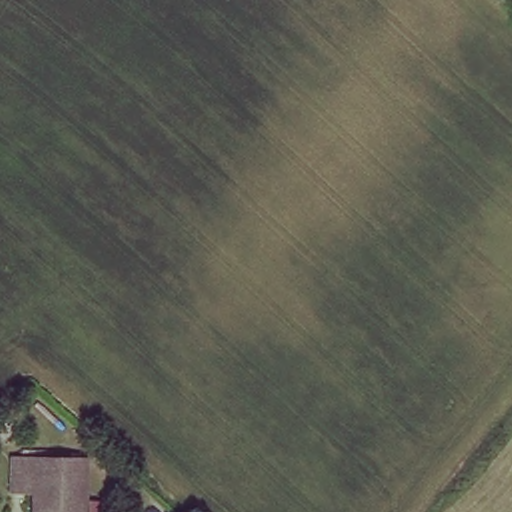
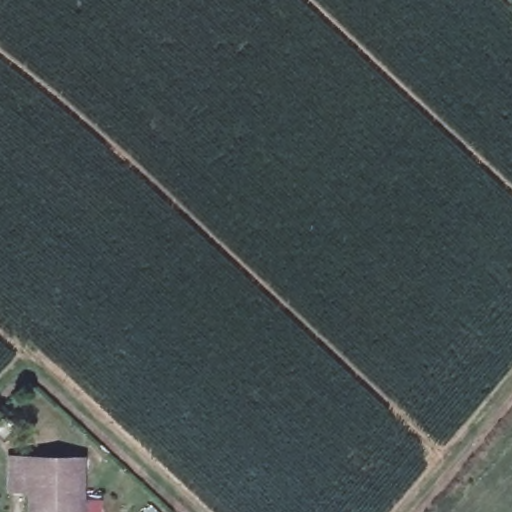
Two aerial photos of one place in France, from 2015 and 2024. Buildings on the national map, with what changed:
unchanged [(13,493),(15,456),(86,461),(84,512),(38,512),(40,494),(13,493)]

